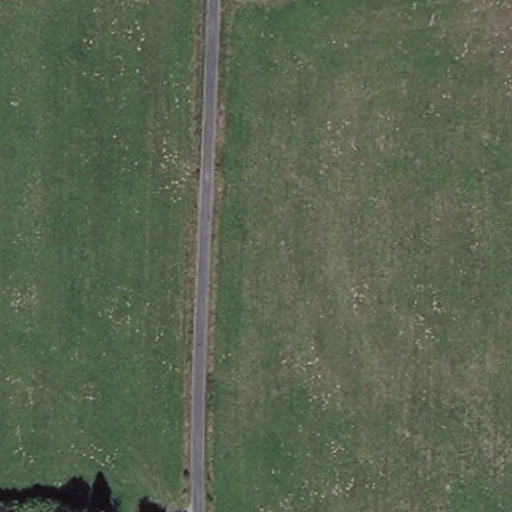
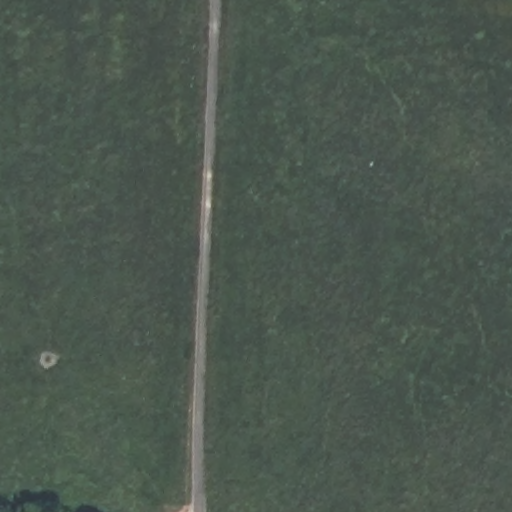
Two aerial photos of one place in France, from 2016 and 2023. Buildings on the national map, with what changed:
[]

